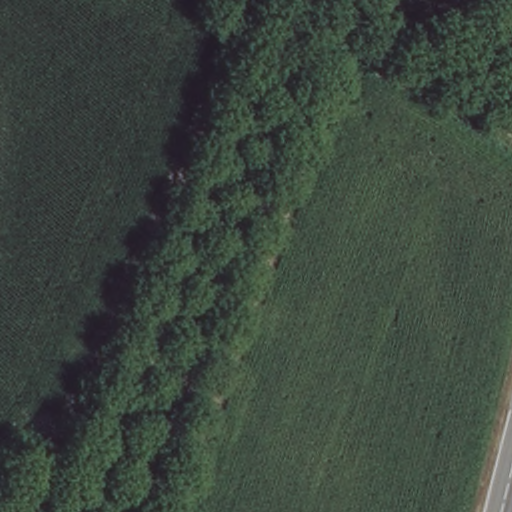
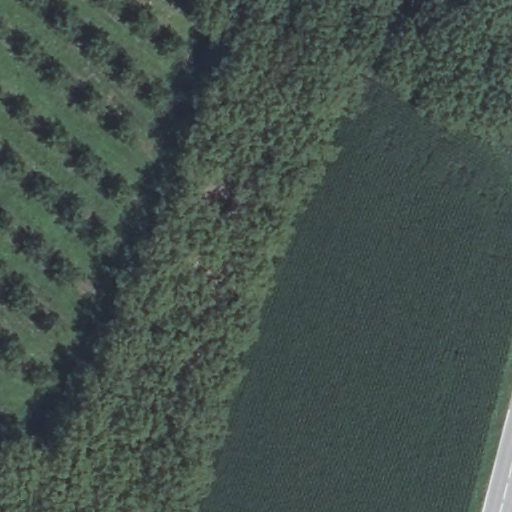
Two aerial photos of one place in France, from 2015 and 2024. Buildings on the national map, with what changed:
[]

